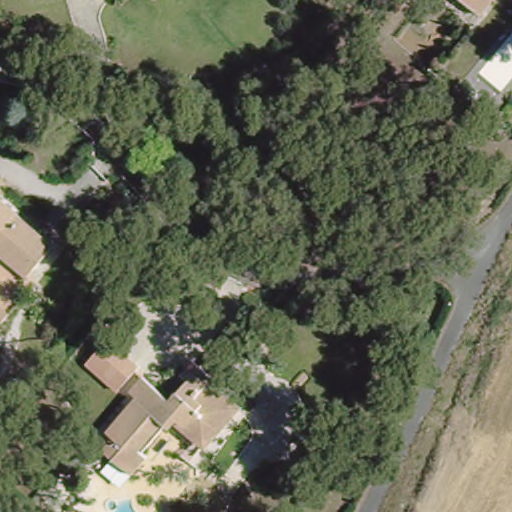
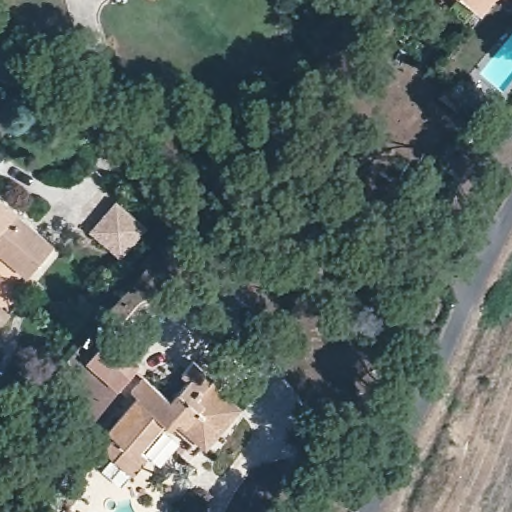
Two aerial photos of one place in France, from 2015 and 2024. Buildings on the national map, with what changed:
unchanged [(480,10),(469,0),(489,0),(480,10)]
unchanged [(23,217),(62,254),(37,282),(0,250),(0,191),(0,192),(25,214),(23,217)]
new [(115,201),(147,227),(120,258),(90,232),(115,201)]
unchanged [(15,318),(5,330),(0,330),(0,305),(15,318)]
unchanged [(138,366),(113,395),(81,366),(106,338),(138,366)]
unchanged [(169,400),(188,378),(181,372),(192,360),(243,403),(205,449),(173,425),(171,427),(165,422),(141,451),(149,457),(136,472),(127,471),(105,451),(115,438),(107,431),(136,396),(130,392),(143,377),(169,400)]

